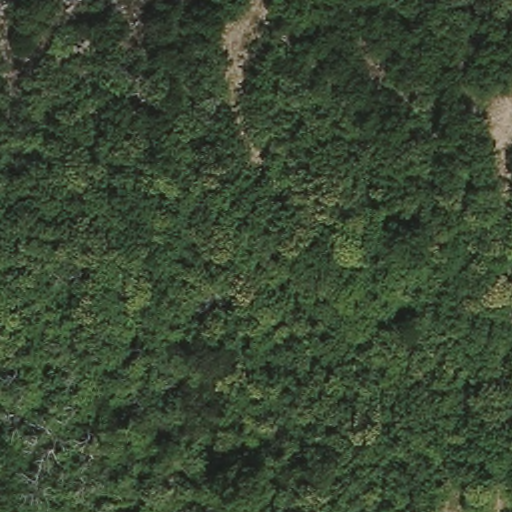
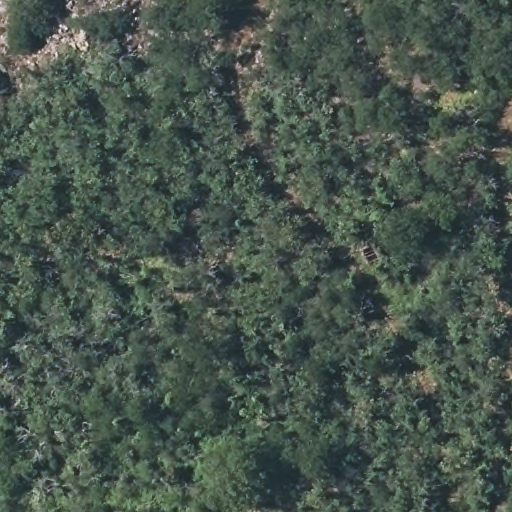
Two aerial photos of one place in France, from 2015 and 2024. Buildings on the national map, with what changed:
unchanged [(322,219),(357,199),(371,224),(337,243),(334,235),(322,219)]
unchanged [(376,337),(375,363),(359,362),(357,337),(376,337)]

